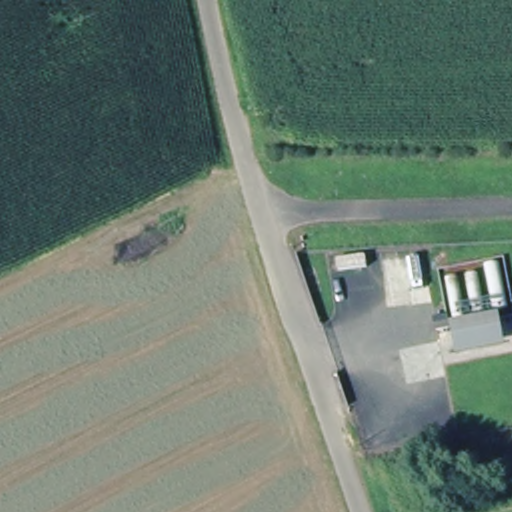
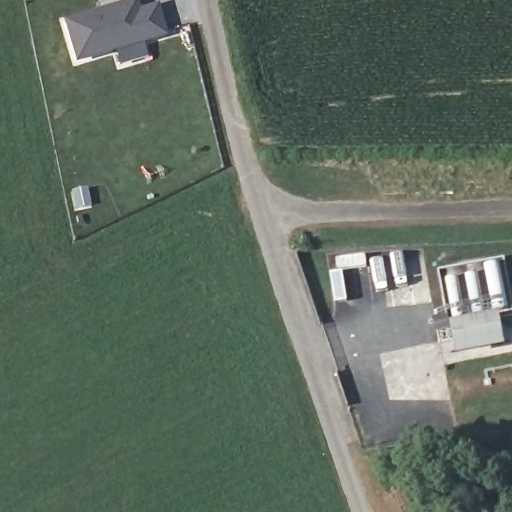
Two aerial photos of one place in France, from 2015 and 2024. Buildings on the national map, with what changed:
new [(136,0),(139,10),(157,4),(166,36),(75,62),(62,20),(133,0),(136,0)]
unchanged [(365,269),(342,272),(340,261),(363,258),(365,269)]
unchanged [(455,317),(510,310),(512,325),(512,340),(460,349),(455,317)]

